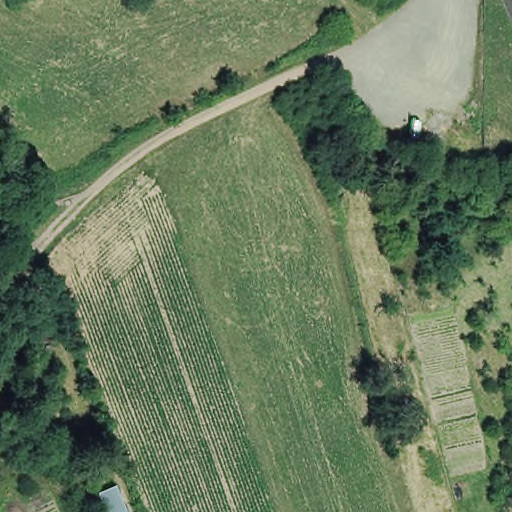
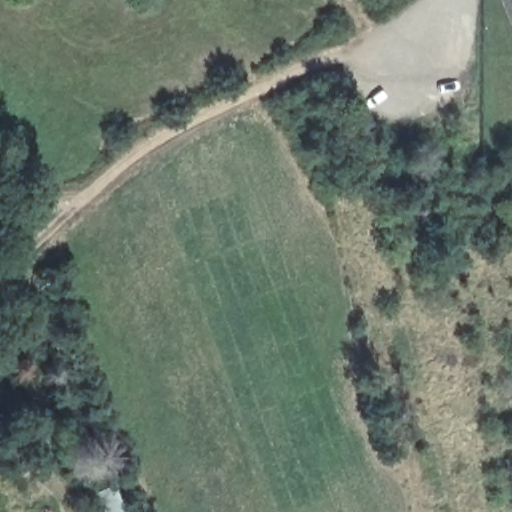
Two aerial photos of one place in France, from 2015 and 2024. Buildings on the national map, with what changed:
unchanged [(114,483),(125,512),(106,512),(97,496),(114,483)]

